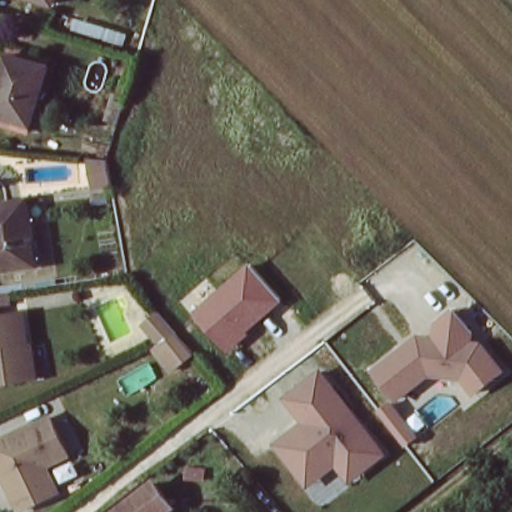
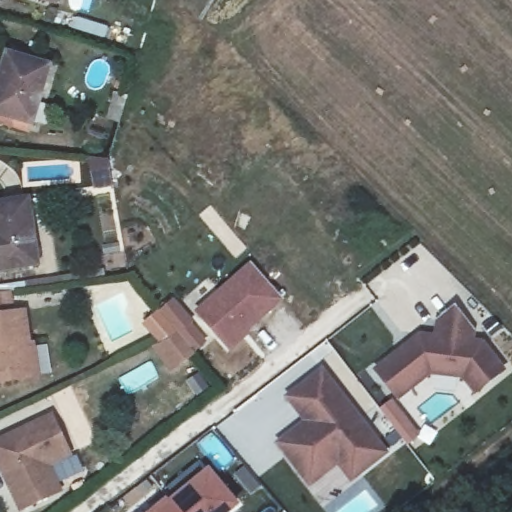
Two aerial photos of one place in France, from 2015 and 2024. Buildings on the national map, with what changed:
unchanged [(47,0),(55,0),(55,2),(47,0)]
unchanged [(10,53),(50,65),(33,121),(0,111),(0,87),(10,53)]
unchanged [(30,196),(40,260),(0,265),(0,200),(30,196)]
unchanged [(230,352),(196,313),(251,266),(282,301),(230,352)]
new [(172,297),(194,320),(191,324),(207,342),(195,352),(157,311),(172,297)]
unchanged [(33,383),(0,388),(0,301),(5,301),(18,299),(19,299),(21,311),(7,312),(8,322),(34,319),(40,351),(42,350),(45,367),(47,381),(33,383)]
unchanged [(476,332),(475,338),(485,341),(507,369),(475,392),(466,381),(434,375),(400,401),(376,368),(422,332),(438,332),(439,318),(457,307),(476,332)]
unchanged [(175,372),(154,348),(160,343),(142,326),(157,311),(195,352),(175,372)]
unchanged [(389,452),(351,481),(339,466),(310,487),(279,443),(306,420),(287,397),(326,368),(389,452)]
unchanged [(395,402),(422,436),(410,445),(384,411),(395,402)]
unchanged [(76,459),(52,470),(64,495),(28,512),(26,512),(0,454),(0,448),(58,421),(76,459)]
new [(209,463),(240,502),(227,512),(149,512),(209,463)]
demolished [(158,482),(175,504),(165,512),(120,512),(158,482)]

